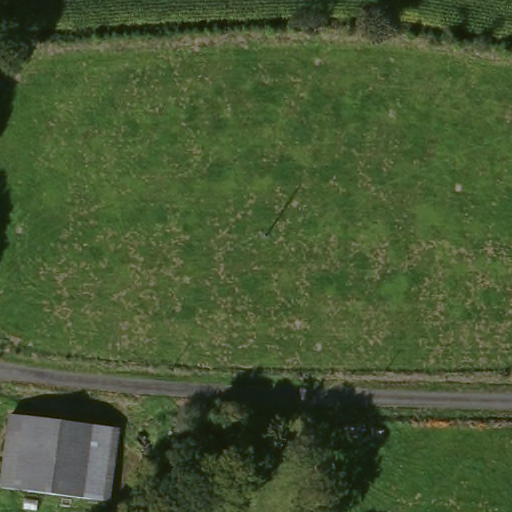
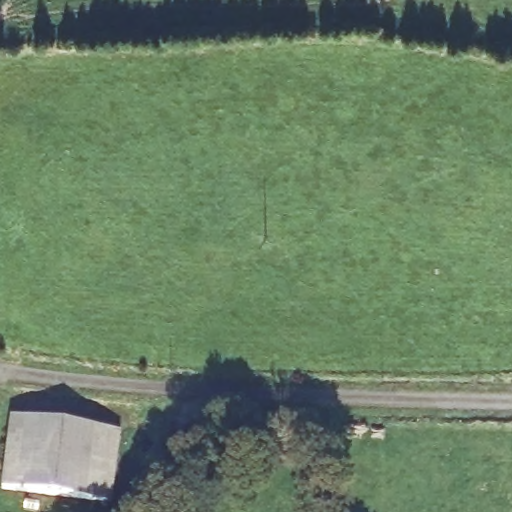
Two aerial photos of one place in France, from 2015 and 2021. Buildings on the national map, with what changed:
unchanged [(113,432),(106,501),(9,483),(18,414),(113,432)]

